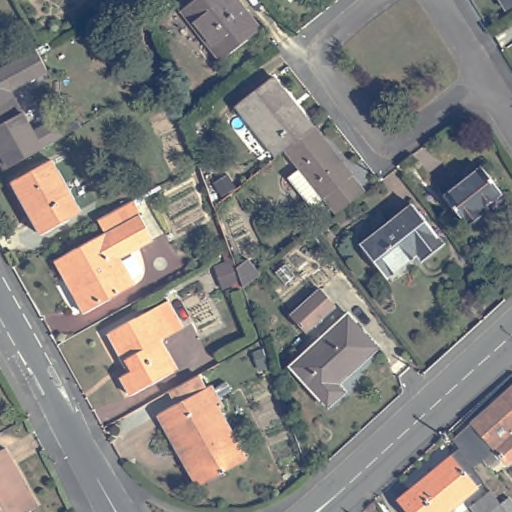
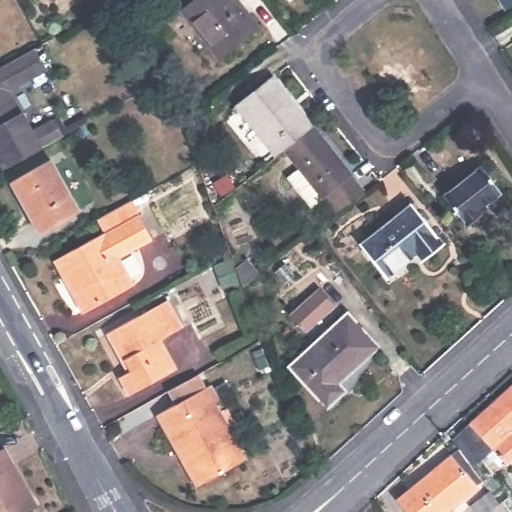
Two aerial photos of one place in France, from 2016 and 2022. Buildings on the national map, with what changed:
unchanged [(227,64),(190,14),(208,0),(240,0),(266,34),(227,64)]
unchanged [(512,0),(512,11),(510,12),(502,0),(512,0)]
unchanged [(44,66),(6,87),(32,133),(0,151),(0,62),(32,45),(44,66)]
unchanged [(250,107),(286,78),(296,91),(292,94),(301,106),(305,103),(326,131),(297,152),(297,153),(290,158),(250,107)]
unchanged [(347,216),(335,198),(323,207),(301,176),(311,168),(297,152),(326,131),(376,194),(347,216)]
unchanged [(87,214),(49,236),(20,183),(58,161),(87,214)]
unchanged [(511,196),(496,208),(492,204),(471,221),(450,195),(486,165),(511,196)]
unchanged [(112,219),(126,211),(135,206),(143,221),(156,245),(123,263),(138,290),(87,319),(58,266),(108,238),(101,225),(112,219)]
unchanged [(452,250),(431,266),(425,259),(393,284),(367,251),(421,208),(452,250)]
unchanged [(224,291),(215,265),(232,258),(235,268),(251,256),(263,277),(247,290),(263,337),(249,343),(230,289),(224,291)]
unchanged [(334,308),(303,334),(288,315),(319,290),(334,308)]
unchanged [(176,377),(139,398),(129,380),(137,374),(116,336),(167,307),(169,309),(177,304),(191,330),(169,344),(176,356),(185,372),(176,377)]
unchanged [(385,351),(346,386),(352,394),(334,409),(300,369),(357,318),(385,351)]
unchanged [(191,409),(182,394),(206,381),(215,395),(219,393),(227,408),(222,411),(254,468),(244,473),(207,495),(167,423),(191,409)]
unchanged [(512,390),(512,464),(500,448),(478,468),(465,448),(457,439),(512,390)]
unchanged [(22,463),(46,507),(39,511),(37,512),(0,512),(0,455),(13,448),(22,463)]
unchanged [(465,448),(478,468),(488,480),(482,486),(482,487),(453,512),(415,512),(405,499),(465,448)]
unchanged [(503,501),(512,494),(512,495),(512,512),(491,512),(505,502),(503,501)]

